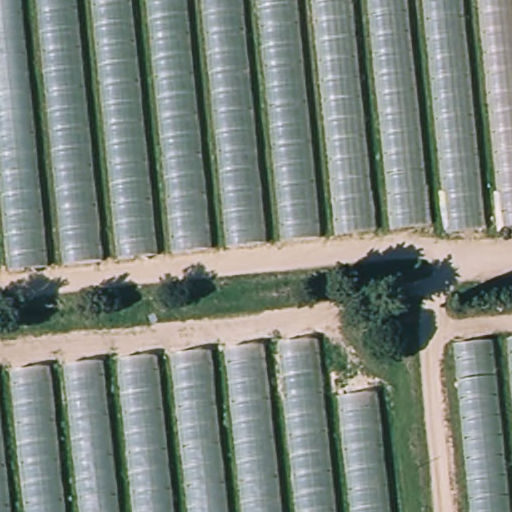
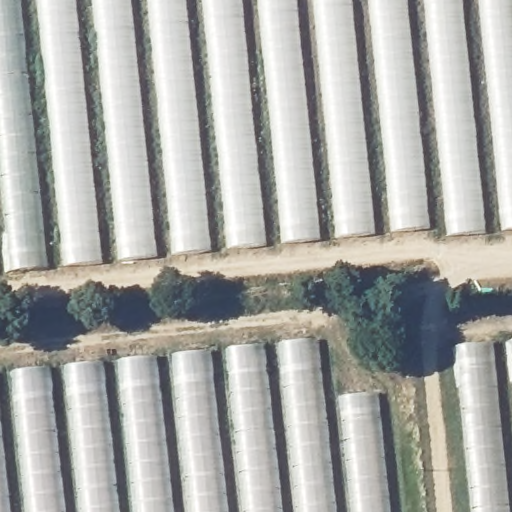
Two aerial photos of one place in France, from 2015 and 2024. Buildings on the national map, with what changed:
unchanged [(0,275),(0,0),(512,0),(512,228),(0,275)]
unchanged [(0,371),(318,337),(324,398),(376,392),(389,512),(0,512),(0,371)]
unchanged [(453,351),(512,345),(512,512),(469,512),(453,351)]

